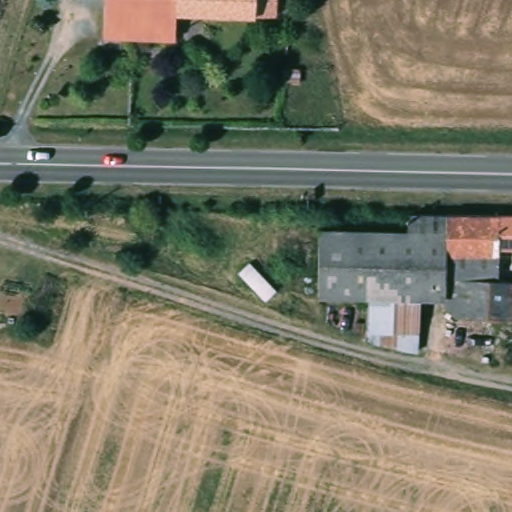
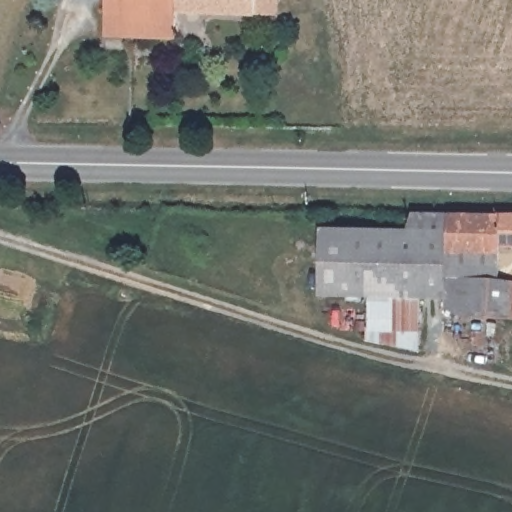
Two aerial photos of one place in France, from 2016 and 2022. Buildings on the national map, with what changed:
unchanged [(100,33),(102,0),(284,0),(283,13),(169,8),(167,35),(100,33)]
unchanged [(439,305),(440,294),(442,227),(442,209),(480,210),(512,210),(512,244),(495,244),(494,273),(486,274),(487,276),(495,276),(512,279),(512,315),(460,313),(439,305)]
unchanged [(317,290),(318,224),(422,226),(420,293),(415,292),(364,291),(317,290)]
unchanged [(440,294),(420,293),(422,226),(442,227),(440,294)]
unchanged [(364,291),(415,292),(414,346),(363,333),(364,291)]

